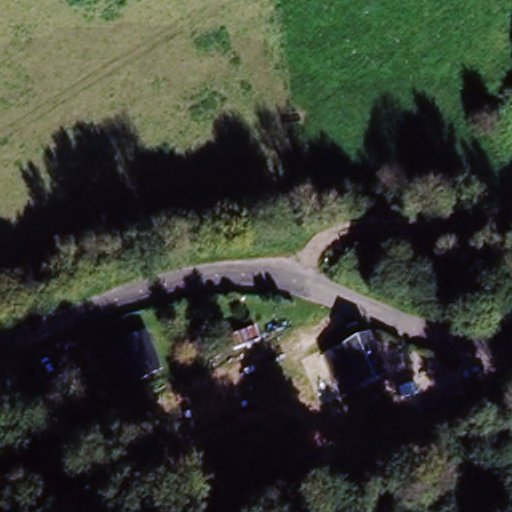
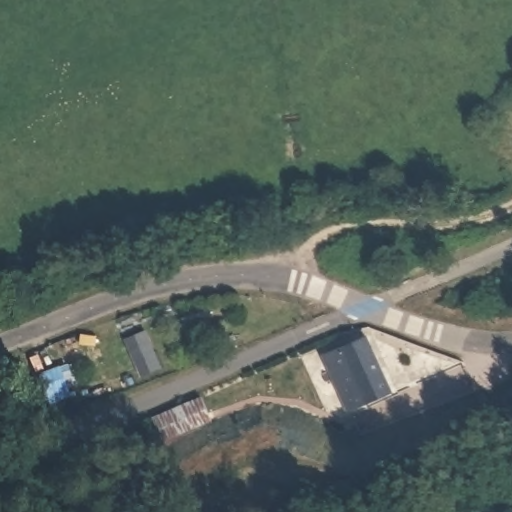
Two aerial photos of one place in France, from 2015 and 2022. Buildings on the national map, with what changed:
unchanged [(146,329),(160,365),(138,374),(125,339),(146,329)]
unchanged [(340,345),(367,335),(387,388),(400,414),(375,422),(364,397),(343,405),(321,356),(340,345)]

